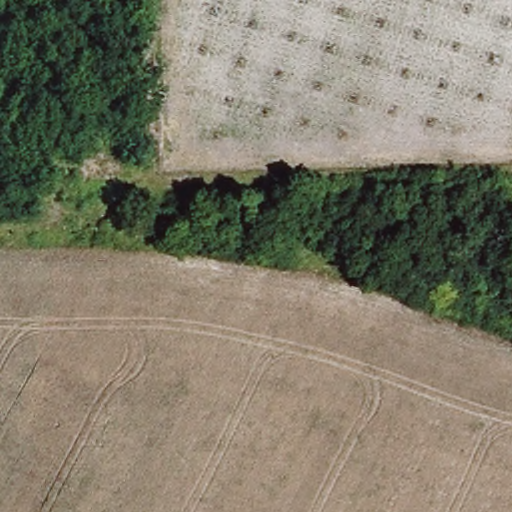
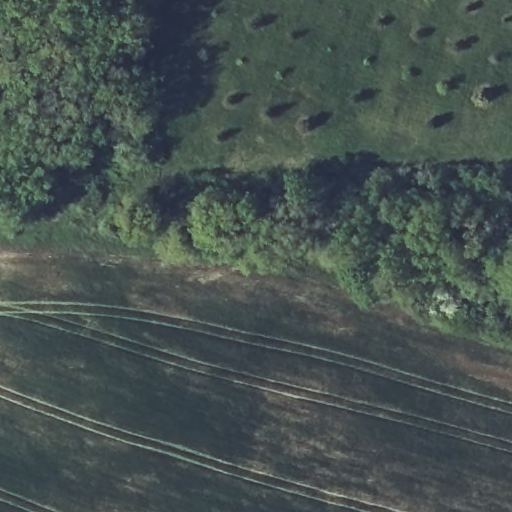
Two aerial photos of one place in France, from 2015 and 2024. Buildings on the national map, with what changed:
unchanged [(54,187),(56,174),(86,176),(81,224),(21,218),(24,185),(54,187)]

